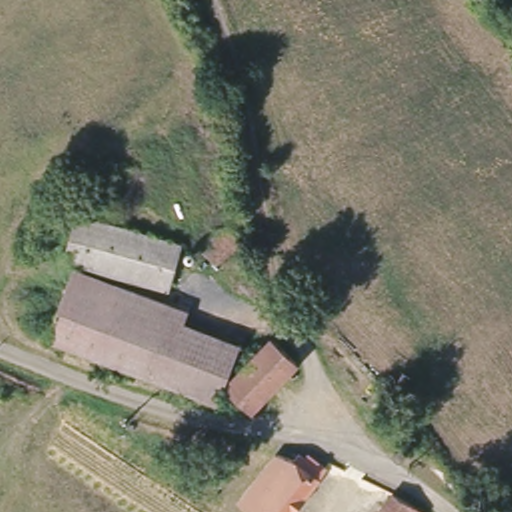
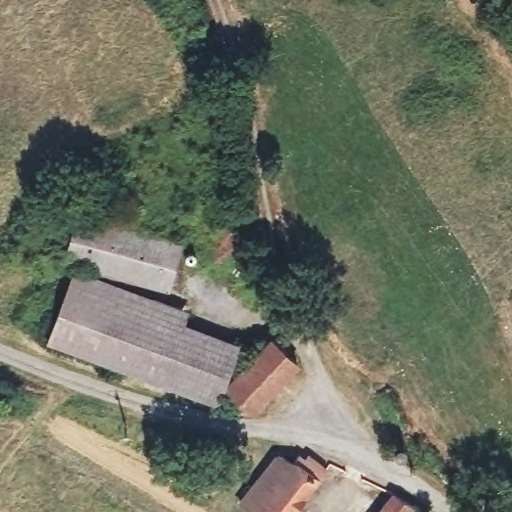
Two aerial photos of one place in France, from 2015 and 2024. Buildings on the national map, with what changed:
unchanged [(114,160),(104,201),(84,195),(94,155),(114,160)]
unchanged [(185,242),(175,288),(67,260),(78,213),(185,242)]
unchanged [(242,238),(213,262),(199,247),(229,221),(242,238)]
unchanged [(74,271),(187,310),(182,324),(69,285),(74,271)]
unchanged [(48,343),(69,285),(182,324),(239,345),(225,382),(222,390),(218,403),(212,401),(207,399),(48,343)]
unchanged [(273,338),(301,362),(253,408),(229,382),(273,338)]
unchanged [(321,475),(294,512),(258,512),(242,499),(282,448),(292,450),(321,475)]
unchanged [(379,512),(394,490),(426,510),(424,512),(379,512)]

